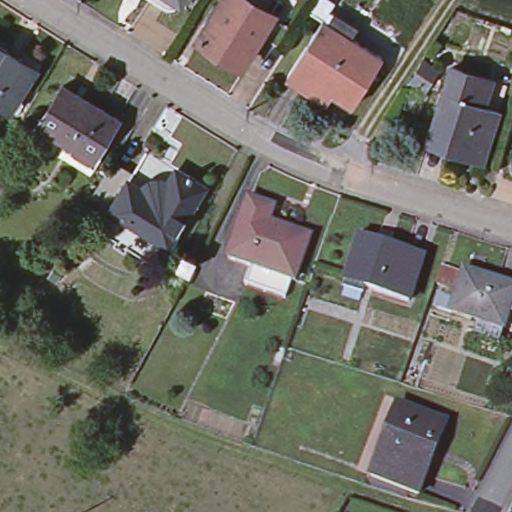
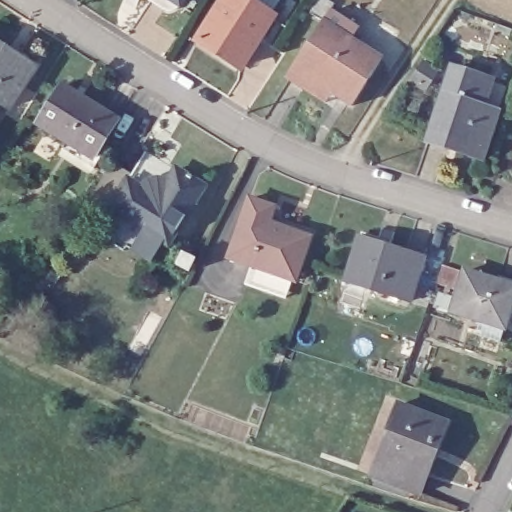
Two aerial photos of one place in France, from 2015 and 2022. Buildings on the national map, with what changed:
unchanged [(177,8),(174,9),(170,10),(166,9),(162,8),(150,0),(184,0),(182,4),(177,8)]
unchanged [(248,0),(273,15),(242,65),(200,38),(224,0),(248,0)]
unchanged [(324,20),(382,58),(352,106),(313,81),(307,89),(287,77),(324,20)]
unchanged [(35,67),(9,107),(0,101),(0,45),(35,67)]
unchanged [(64,85),(119,120),(93,158),(39,123),(64,85)]
unchanged [(435,91),(490,109),(474,158),(447,149),(450,139),(422,130),(435,91)]
unchanged [(92,201),(113,166),(133,178),(140,183),(154,160),(204,192),(168,248),(111,213),(92,201)]
unchanged [(250,199),(275,207),(270,222),(309,236),(294,279),(230,256),(250,199)]
unchanged [(362,234),(425,254),(410,299),(347,278),(362,234)]
unchanged [(186,253),(195,258),(189,270),(179,264),(186,253)]
unchanged [(447,266),(469,272),(512,286),(512,322),(510,330),(457,313),(465,285),(444,278),(447,266)]
unchanged [(400,401),(441,415),(429,450),(436,453),(424,490),(375,472),(400,401)]

